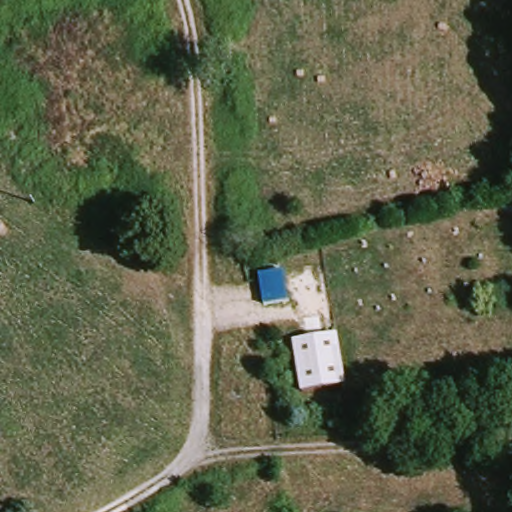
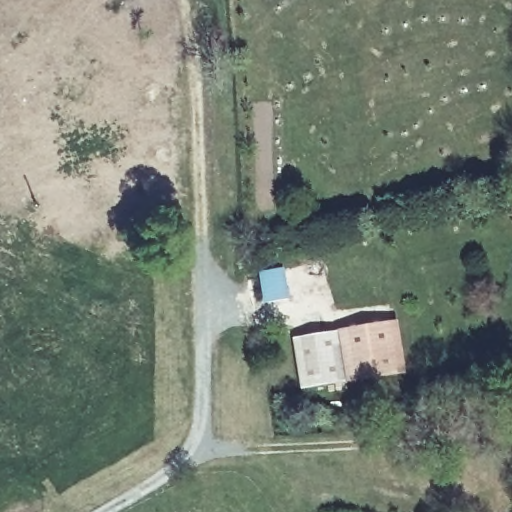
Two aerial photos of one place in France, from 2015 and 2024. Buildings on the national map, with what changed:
new [(406,371),(346,382),(336,331),(397,321),(406,371)]
unchanged [(346,382),(302,390),(293,338),(336,331),(346,382)]

